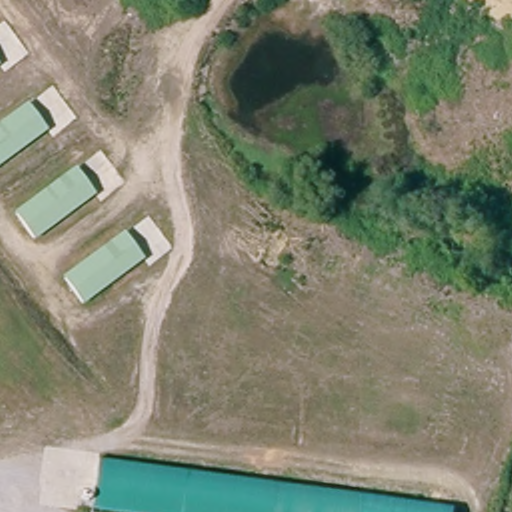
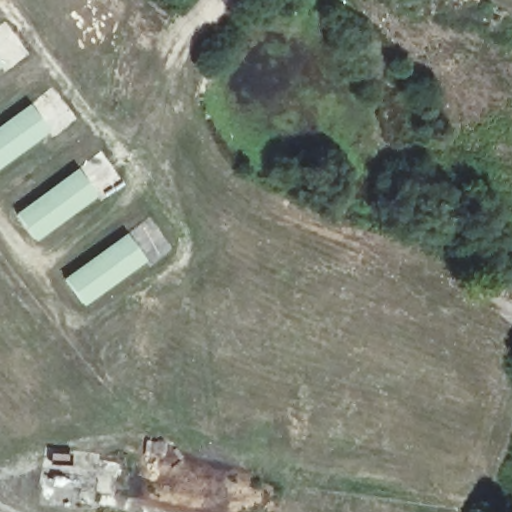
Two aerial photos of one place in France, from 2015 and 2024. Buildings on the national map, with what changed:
unchanged [(0,64),(0,61),(2,63),(0,64)]
unchanged [(48,126),(0,166),(0,128),(30,103),(48,126)]
unchanged [(78,167),(96,191),(37,238),(19,213),(78,167)]
unchanged [(132,231),(150,254),(91,303),(72,279),(132,231)]
demolished [(102,469),(456,507),(455,512),(97,512),(102,469)]

